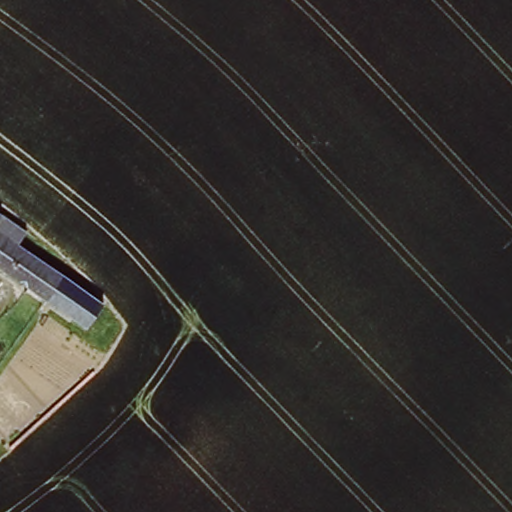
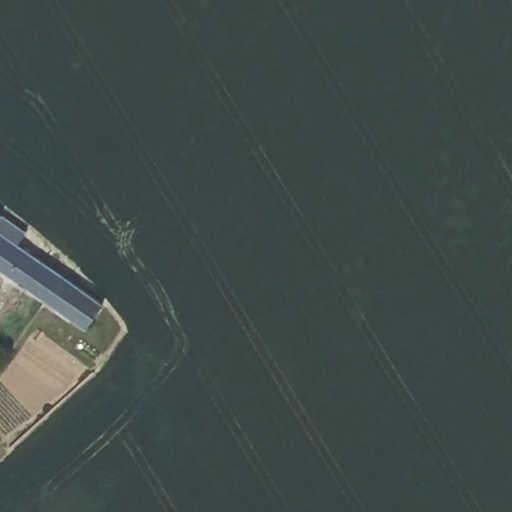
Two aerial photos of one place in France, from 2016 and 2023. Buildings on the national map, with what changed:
unchanged [(86,331),(0,270),(0,217),(27,236),(19,247),(104,306),(86,331)]
unchanged [(0,296),(0,289),(3,291),(0,296)]

